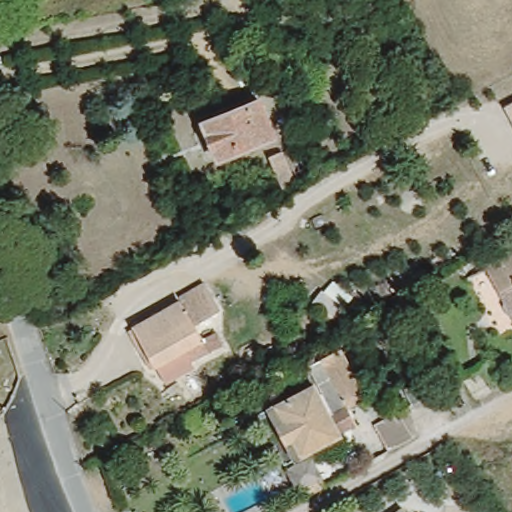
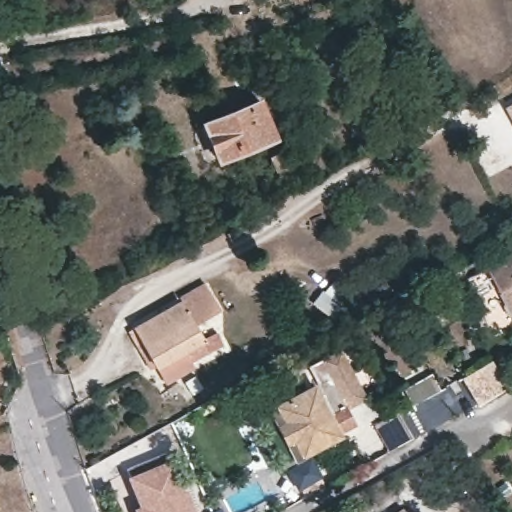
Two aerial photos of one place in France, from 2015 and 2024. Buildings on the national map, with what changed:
unchanged [(276,140),(219,164),(202,121),(259,99),(276,140)]
unchanged [(512,103),(512,122),(504,107),(512,103)]
unchanged [(295,184),(282,187),(270,157),(283,151),(295,184)]
unchanged [(263,207),(269,221),(248,232),(240,219),(263,207)]
unchanged [(479,273),(512,255),(512,302),(498,310),(479,273)]
unchanged [(353,297),(334,320),(313,303),(322,290),(325,292),(334,281),(353,297)]
unchanged [(219,310),(195,324),(204,340),(217,333),(222,345),(192,361),(195,368),(166,384),(134,328),(207,287),(219,310)]
unchanged [(268,412),(276,408),(317,387),(331,380),(322,364),(343,353),(368,403),(348,413),(333,420),(344,442),(304,463),(296,467),(268,412)]
new [(493,360),(509,387),(480,406),(463,378),(493,360)]
new [(431,373),(441,390),(413,407),(403,389),(431,373)]
unchanged [(413,438),(390,450),(378,429),(401,416),(413,438)]
new [(138,512),(126,480),(167,464),(188,512),(138,512)]
unchanged [(326,486),(310,495),(304,482),(319,474),(326,486)]
unchanged [(405,512),(400,512),(404,510),(405,512)]

